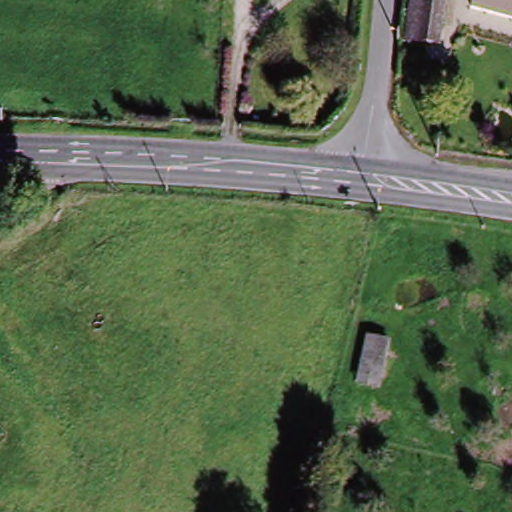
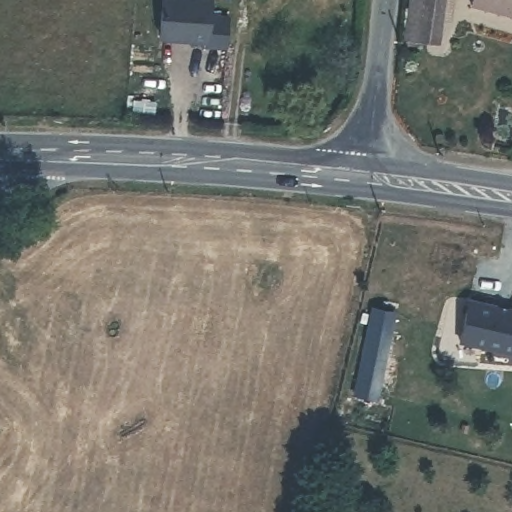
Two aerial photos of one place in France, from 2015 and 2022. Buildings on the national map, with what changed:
new [(208,42),(190,41),(190,38),(178,37),(178,41),(164,40),(160,35),(163,0),(211,0),(208,42)]
unchanged [(438,44),(405,41),(410,0),(443,0),(438,44)]
unchanged [(475,10),(478,0),(512,0),(512,22),(475,10)]
new [(460,340),(469,297),(512,307),(512,352),(460,340)]
unchanged [(388,374),(366,370),(373,333),(395,337),(388,374)]

